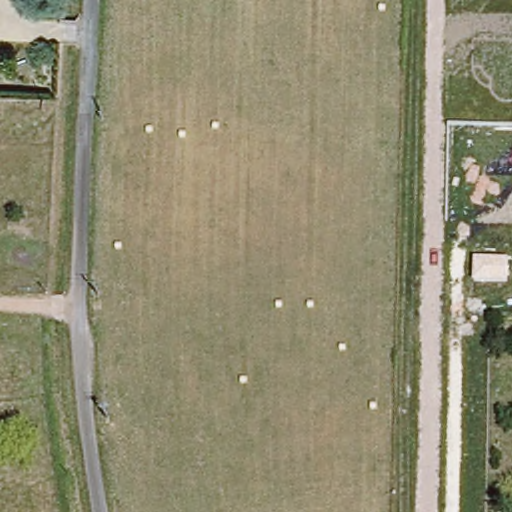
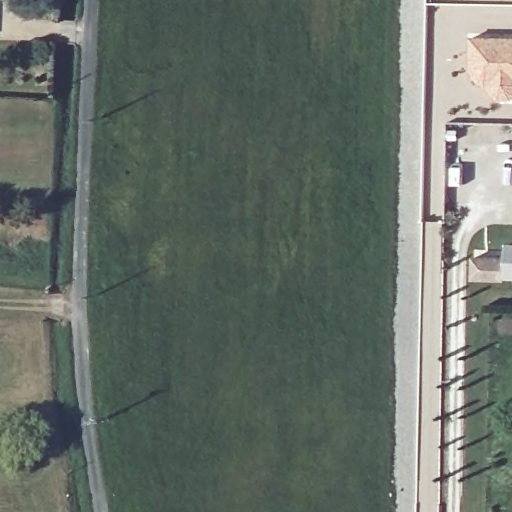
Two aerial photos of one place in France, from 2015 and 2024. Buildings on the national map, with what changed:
new [(506,101),(499,99),(493,94),(491,87),(480,83),(474,77),(472,69),(472,37),(512,37),(512,100),(506,101)]
new [(473,259),(506,258),(506,282),(472,281),(473,259)]

